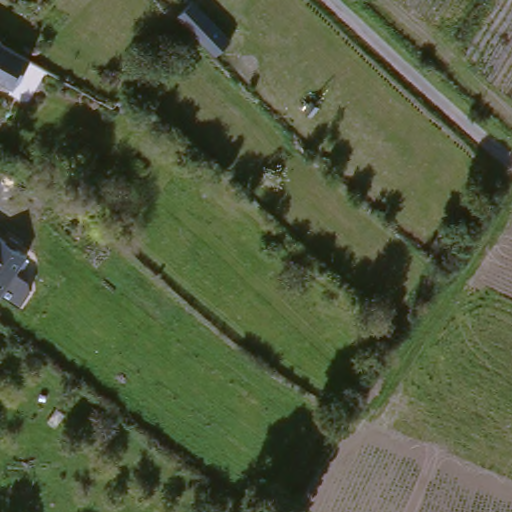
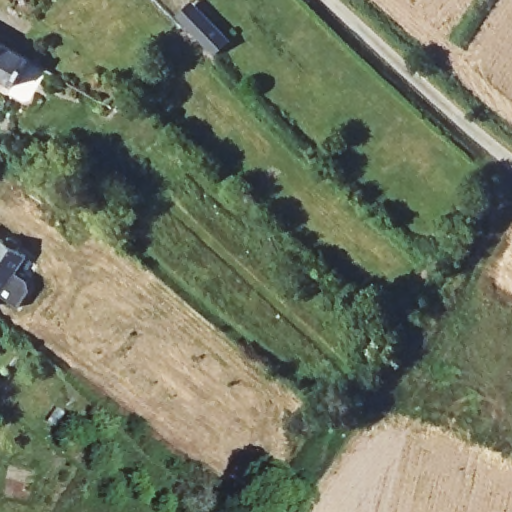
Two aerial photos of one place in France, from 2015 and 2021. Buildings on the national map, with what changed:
unchanged [(217,54),(216,53),(191,29),(177,15),(191,1),(205,15),(231,39),(217,54)]
unchanged [(0,70),(0,34),(35,54),(20,81),(0,70)]
unchanged [(20,268),(8,285),(0,297),(0,254),(13,264),(20,268)]

